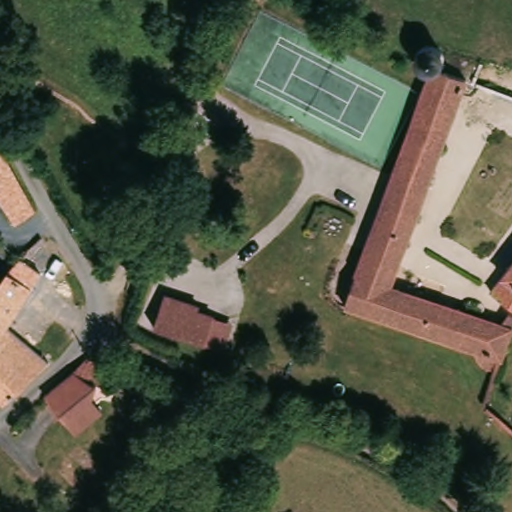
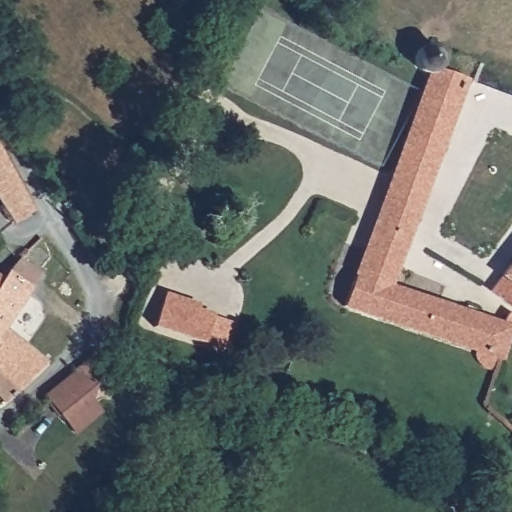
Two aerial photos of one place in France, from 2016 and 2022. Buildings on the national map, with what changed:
unchanged [(437,159),(428,185),(394,172),(401,150),(407,132),(414,110),(415,108),(425,80),(427,74),(422,71),(420,69),(419,68),(417,65),(416,62),(415,58),(420,54),(423,52),(433,47),(438,45),(441,46),(443,48),(445,50),(446,53),(446,54),(446,58),(445,61),(444,64),(443,68),(459,73),(466,74),(437,159)]
unchanged [(13,171),(35,209),(13,222),(0,197),(0,144),(13,171)]
unchanged [(419,211),(385,198),(390,184),(394,172),(428,185),(419,211)]
unchanged [(396,284),(498,318),(510,308),(512,310),(512,338),(510,342),(500,357),(486,352),(482,351),(477,350),(455,343),(424,335),(414,332),(393,325),(362,315),(348,311),(351,301),(353,295),(356,284),(363,264),(374,233),(378,223),(382,210),(385,198),(419,211),(412,234),(396,284)]
unchanged [(16,259),(23,252),(43,264),(12,315),(0,329),(0,276),(16,259)]
unchanged [(512,261),(512,301),(491,287),(512,261)]
unchanged [(227,320),(214,352),(154,329),(167,296),(227,320)]
unchanged [(12,315),(12,316),(39,360),(0,398),(0,329),(12,315)]
unchanged [(74,438),(64,425),(46,398),(51,392),(54,388),(58,383),(63,378),(72,371),(86,357),(87,358),(113,367),(103,391),(96,389),(92,404),(102,418),(74,438)]

